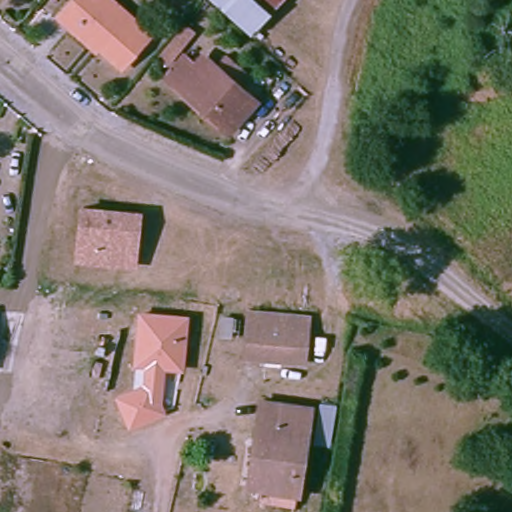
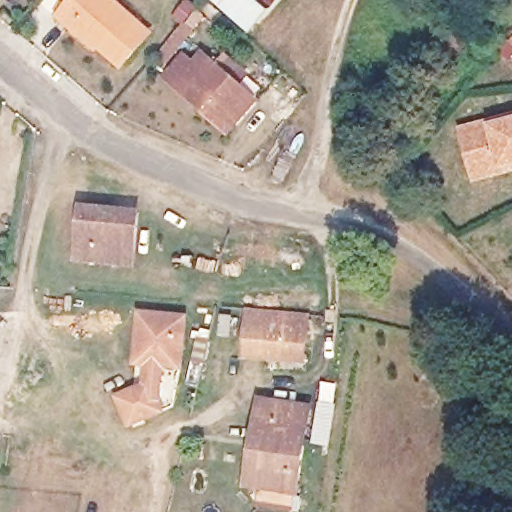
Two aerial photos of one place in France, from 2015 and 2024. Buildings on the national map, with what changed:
unchanged [(121,70),(94,46),(87,51),(56,21),(76,0),(113,0),(154,36),(121,70)]
unchanged [(209,1),(207,0),(275,0),(245,33),(209,1)]
unchanged [(182,52),(174,42),(210,6),(219,16),(182,52)]
unchanged [(201,112),(169,81),(186,64),(195,72),(207,60),(256,105),(232,129),(226,135),(201,112)]
new [(512,120),(512,174),(472,185),(459,134),(488,126),(512,120)]
unchanged [(134,264),(119,263),(76,259),(81,207),(124,210),(139,212),(134,264)]
unchanged [(300,365),(245,361),(249,311),(305,315),(300,365)]
unchanged [(189,316),(185,366),(167,365),(165,396),(165,402),(168,411),(136,425),(124,398),(136,392),(139,391),(150,386),(152,364),(140,363),(144,313),(189,316)]
unchanged [(250,448),(255,402),(312,410),(300,499),(291,498),(290,511),(257,507),(258,494),(252,493),(244,492),(250,448)]

